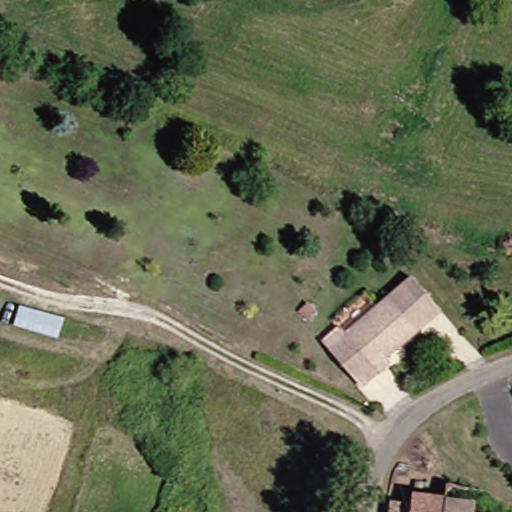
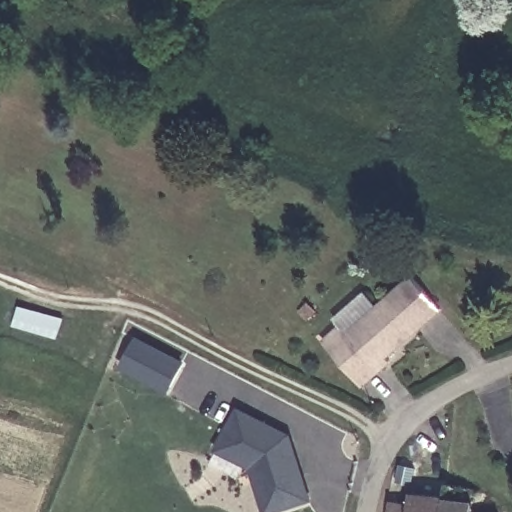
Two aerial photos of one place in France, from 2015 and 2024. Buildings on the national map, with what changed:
unchanged [(439,303),(389,351),(346,327),(407,268),(439,303)]
unchanged [(65,316),(59,339),(12,322),(22,305),(65,316)]
unchanged [(346,327),(389,351),(392,352),(367,380),(327,337),(340,323),(346,327)]
new [(122,367),(139,335),(186,360),(169,392),(122,367)]
new [(239,406),(291,433),(312,501),(274,512),(263,512),(249,468),(216,451),(239,406)]
unchanged [(405,503),(407,481),(424,484),(423,493),(437,496),(434,512),(383,512),(385,502),(405,503)]
unchanged [(470,507),(492,512),(434,512),(437,496),(440,481),(472,487),(470,507)]
unchanged [(512,512),(496,512),(497,508),(512,512)]

